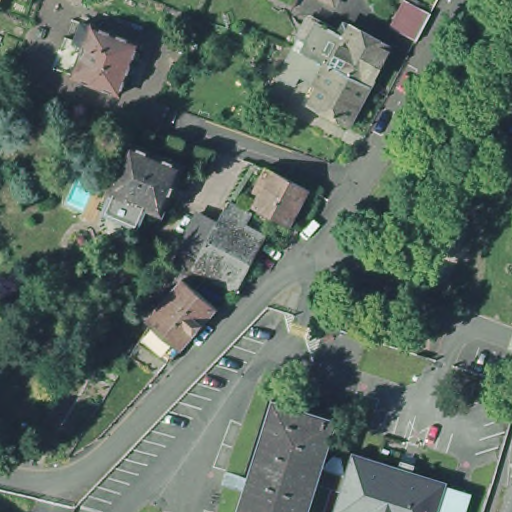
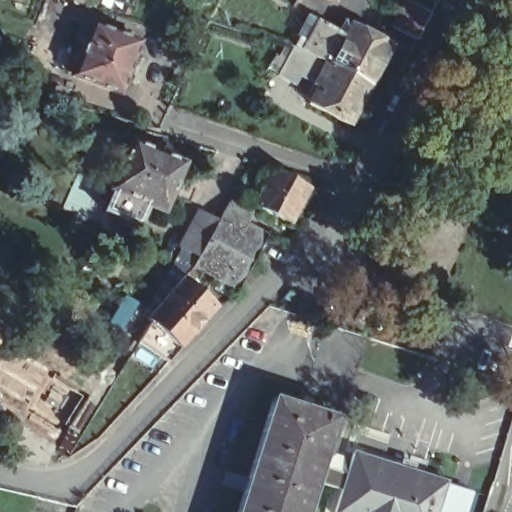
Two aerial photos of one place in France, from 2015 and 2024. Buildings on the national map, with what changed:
unchanged [(430,17),(416,45),(391,31),(404,5),(430,17)]
unchanged [(88,37),(80,35),(88,13),(96,16),(97,15),(143,32),(124,84),(77,66),(88,37)]
unchanged [(309,109),(317,92),(312,90),(299,83),(294,91),(276,81),(291,51),(296,53),(311,25),(344,42),(351,29),(391,50),(369,90),(349,130),(309,109)]
unchanged [(166,212),(151,206),(143,226),(141,226),(140,229),(129,224),(127,229),(117,225),(119,220),(109,215),(110,212),(108,212),(117,192),(114,191),(136,144),(186,165),(166,212)]
unchanged [(313,184),(294,219),(259,201),(265,190),(259,186),(269,167),(271,162),(313,184)]
unchanged [(206,207),(222,215),(227,205),(233,195),(256,208),(251,219),(272,231),(241,285),(197,261),(188,272),(176,263),(186,244),(206,207)]
unchanged [(142,340),(155,318),(151,314),(186,273),(219,303),(184,344),(173,357),(142,340)]
unchanged [(339,413),(324,461),(326,461),(338,449),(345,451),(348,468),(349,469),(356,447),(449,476),(438,512),(340,512),(337,511),(344,485),(319,477),(308,512),(237,512),(275,393),(339,413)]

